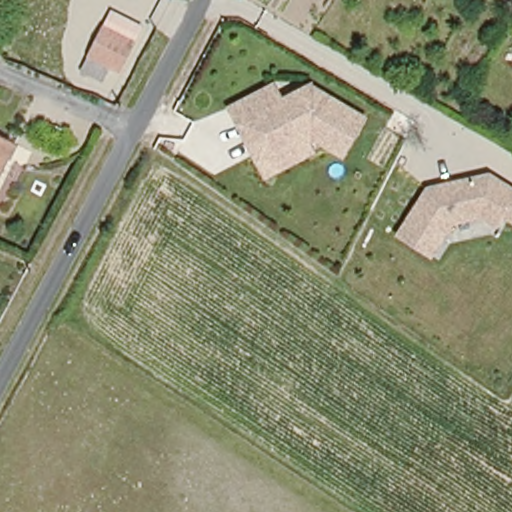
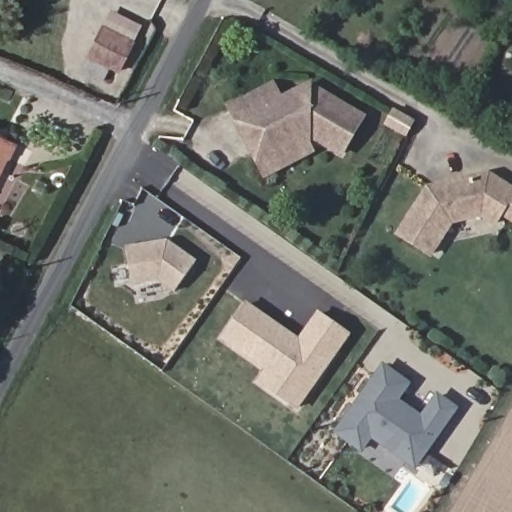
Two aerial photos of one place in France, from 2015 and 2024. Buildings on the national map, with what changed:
new [(81,71),(89,56),(87,56),(104,23),(111,10),(142,26),(135,39),(137,39),(120,72),(110,67),(103,80),(81,71)]
demolished [(107,23),(136,35),(125,61),(95,49),(107,23)]
unchanged [(225,105),(268,81),(276,96),(305,81),(359,112),(338,149),(304,130),(301,131),(269,149),(249,113),(234,121),(225,105)]
unchanged [(249,113),(269,149),(301,131),(309,146),(262,173),(234,121),(249,113)]
unchanged [(3,152),(0,151),(0,133),(9,137),(3,152)]
unchanged [(443,187),(445,183),(489,171),(512,185),(512,216),(503,210),(496,221),(483,212),(454,219),(434,252),(402,232),(430,187),(435,189),(443,187)]
new [(157,281),(132,285),(125,245),(165,237),(195,259),(172,292),(157,281)]
new [(297,337),(317,310),(350,334),(296,410),(255,381),(263,369),(220,338),(246,301),(297,337)]
new [(361,452),(331,432),(381,361),(411,382),(399,399),(418,413),(434,390),(455,404),(453,408),(454,414),(414,464),(373,448),(361,452)]

